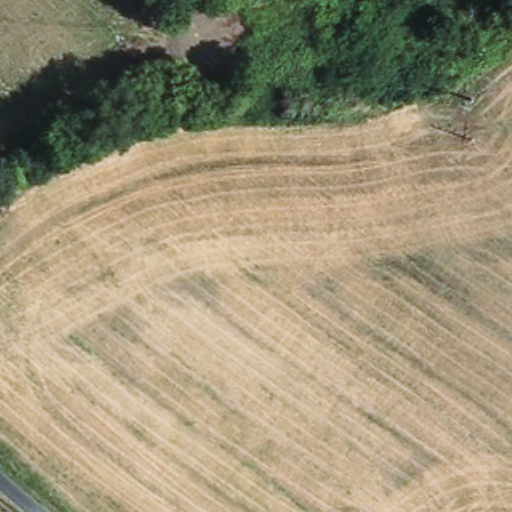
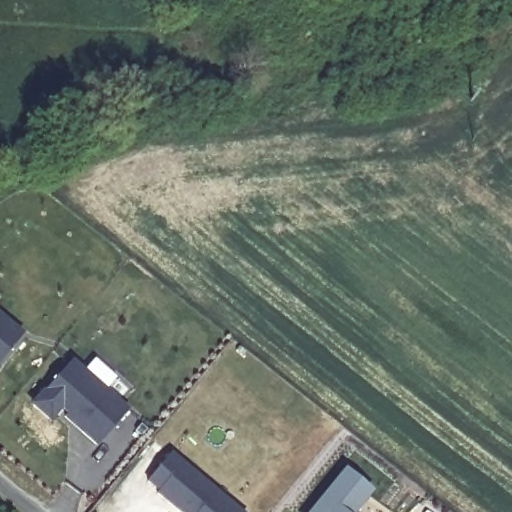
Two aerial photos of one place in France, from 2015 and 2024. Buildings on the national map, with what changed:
new [(0,361),(0,313),(24,333),(0,361)]
new [(68,414),(44,393),(73,360),(128,409),(96,446),(65,418),(68,414)]
new [(147,483),(171,453),(242,512),(178,512),(157,495),(160,492),(147,483)]
new [(372,493),(356,512),(309,512),(345,469),(372,493)]

